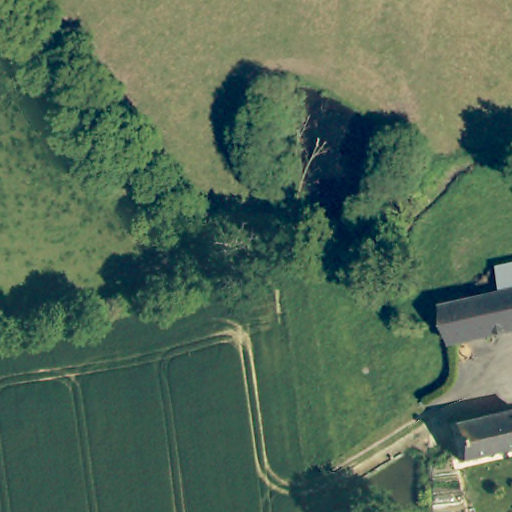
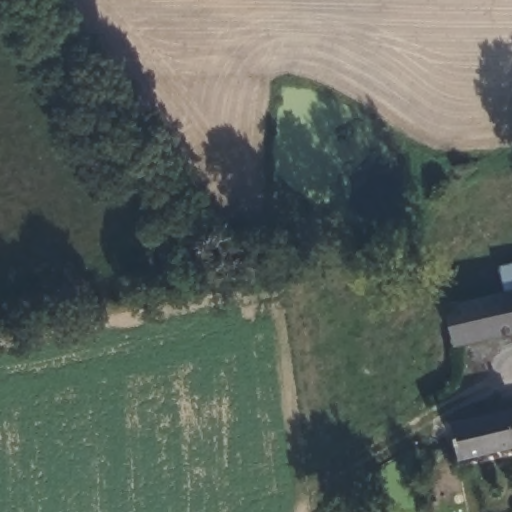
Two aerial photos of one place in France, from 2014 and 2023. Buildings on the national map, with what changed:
unchanged [(506,294),(503,265),(512,264),(512,331),(446,341),(443,301),(506,294)]
unchanged [(451,414),(512,402),(512,444),(460,453),(454,430),(451,414)]

